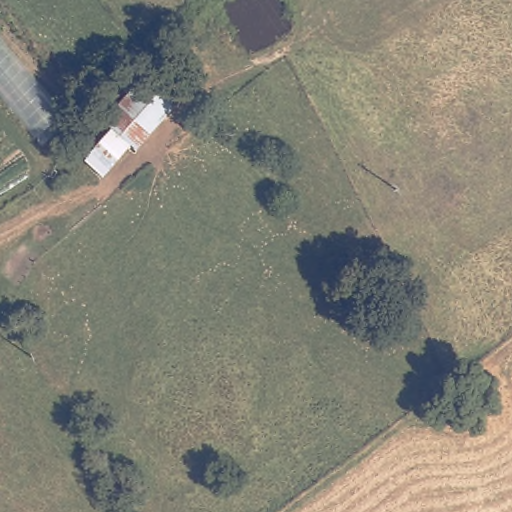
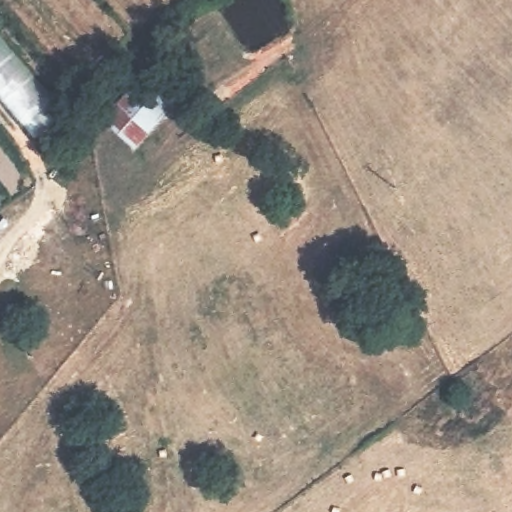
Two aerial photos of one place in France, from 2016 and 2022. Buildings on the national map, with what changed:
unchanged [(109,110),(133,82),(164,107),(139,137),(109,110)]

